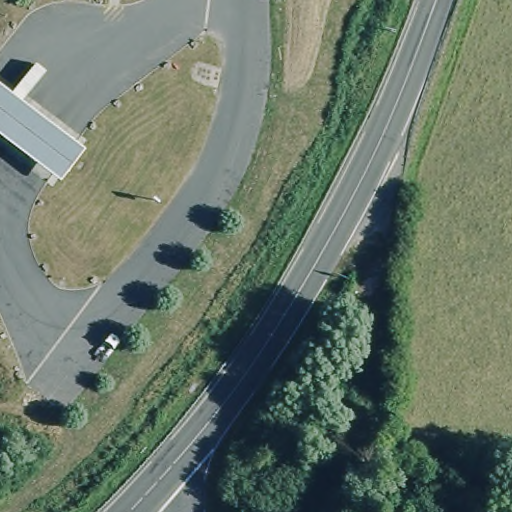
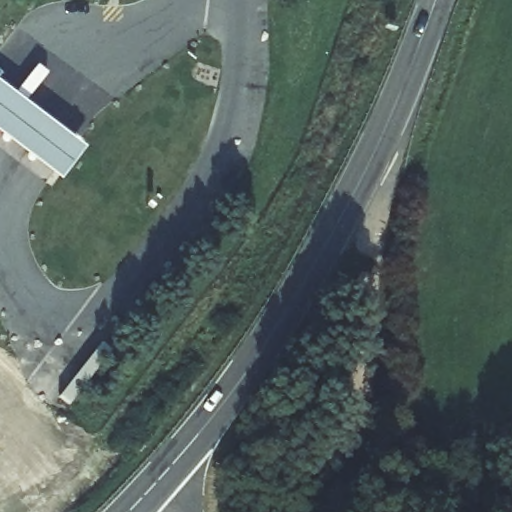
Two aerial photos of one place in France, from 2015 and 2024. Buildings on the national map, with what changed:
unchanged [(85,146),(61,182),(0,136),(0,84),(85,146)]

